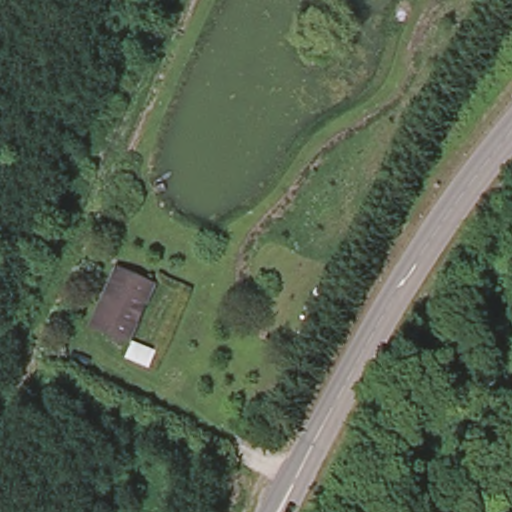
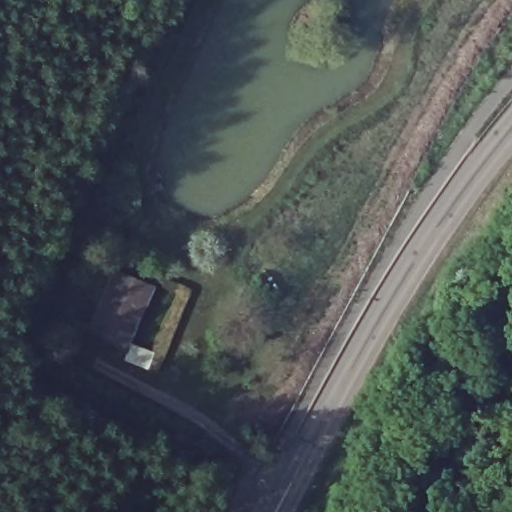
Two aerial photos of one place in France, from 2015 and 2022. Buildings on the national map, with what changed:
unchanged [(129,344),(156,355),(153,362),(125,351),(126,343),(89,328),(115,267),(155,284),(129,344)]

